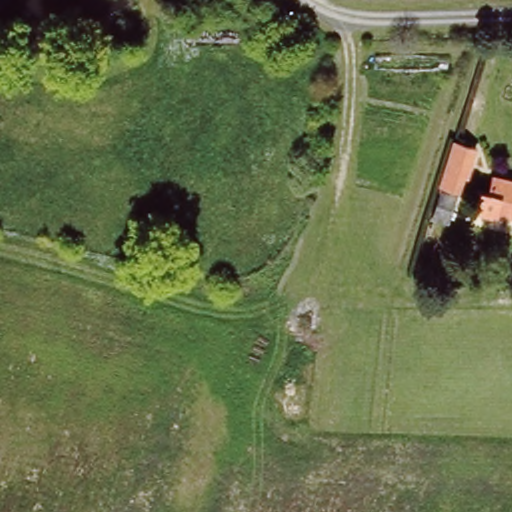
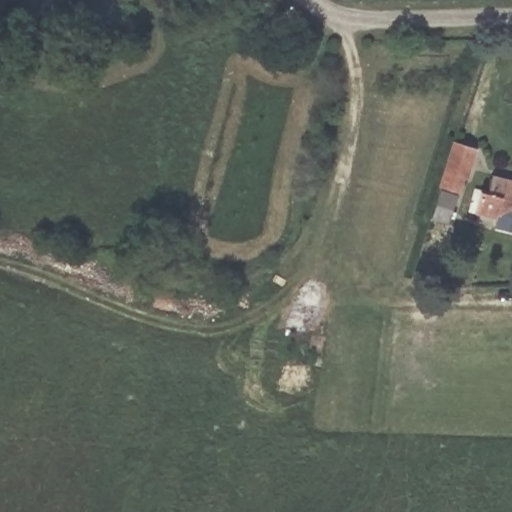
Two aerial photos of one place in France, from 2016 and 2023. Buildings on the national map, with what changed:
unchanged [(439,183),(447,166),(458,135),(478,141),(475,148),(468,173),(463,171),(457,189),(439,183)]
unchanged [(512,217),(496,213),(501,197),(486,194),(492,174),(512,180),(512,217)]
unchanged [(451,193),(441,218),(428,214),(438,188),(451,193)]

